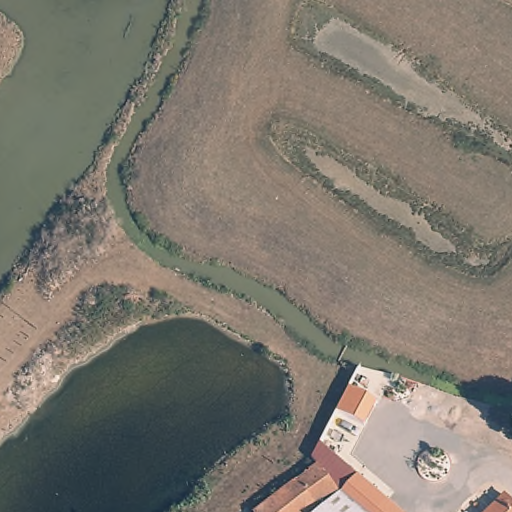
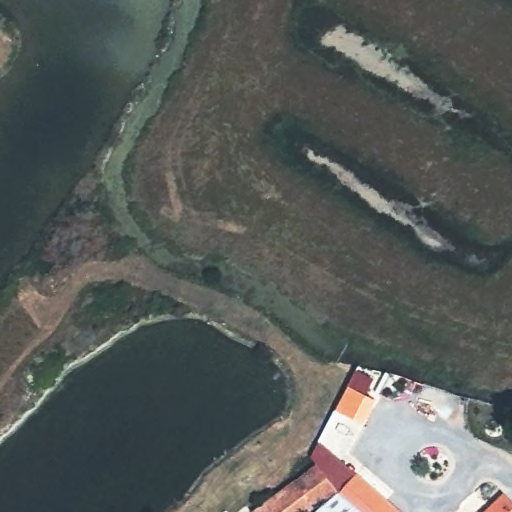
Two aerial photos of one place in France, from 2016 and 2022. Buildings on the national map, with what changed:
unchanged [(325,481),(342,501),(365,477),(404,512),(289,512),(305,498),(325,481)]
unchanged [(512,510),(512,512),(484,512),(500,497),(512,510)]

